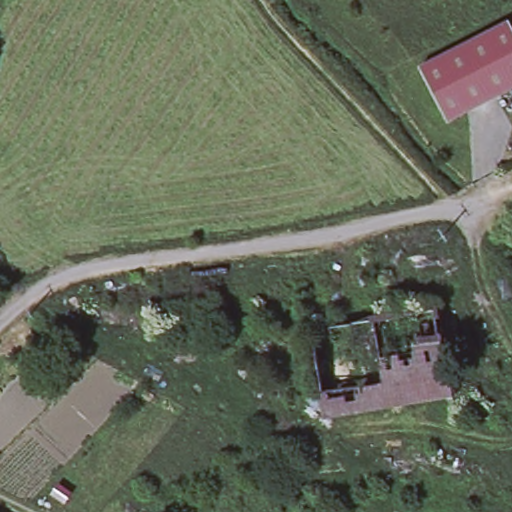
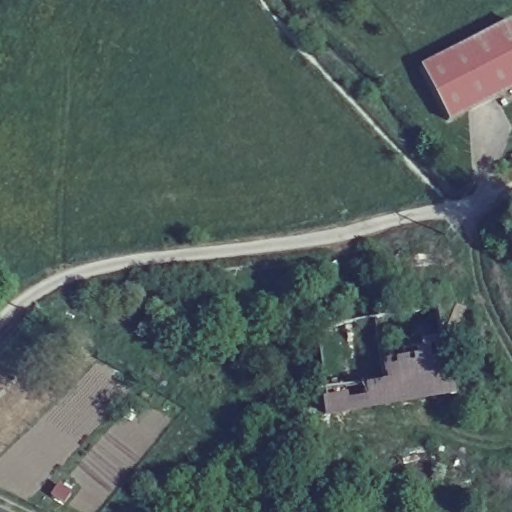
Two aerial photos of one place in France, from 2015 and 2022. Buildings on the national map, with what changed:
unchanged [(508,21),(512,31),(512,91),(446,123),(415,63),(508,21)]

